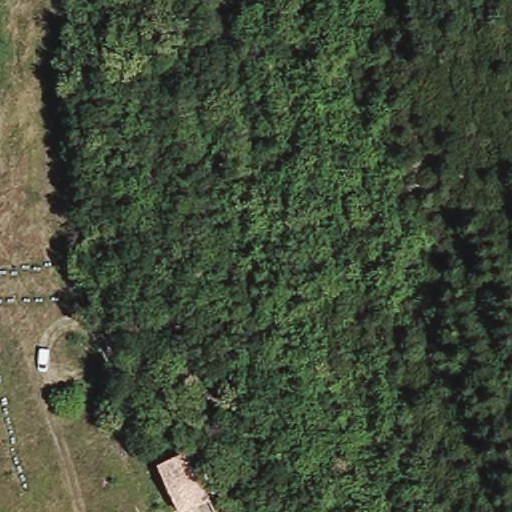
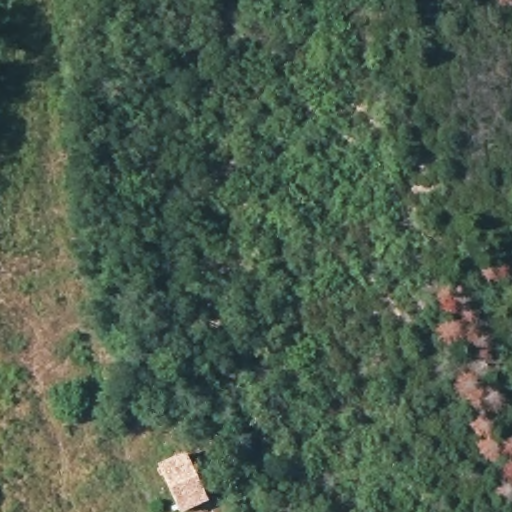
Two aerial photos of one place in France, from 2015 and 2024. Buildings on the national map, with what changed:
unchanged [(200,501),(175,510),(165,487),(155,466),(180,456),(189,477),(191,477),(200,501)]

